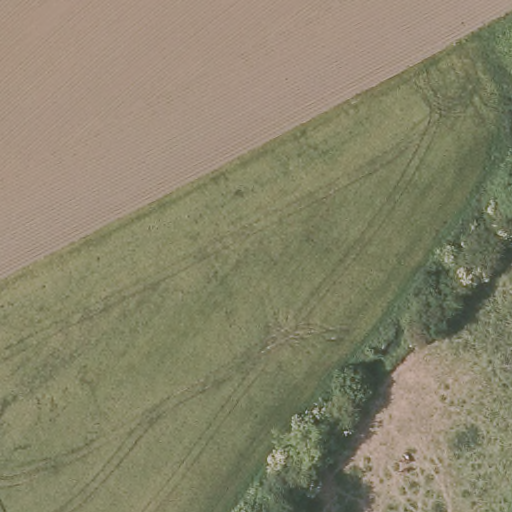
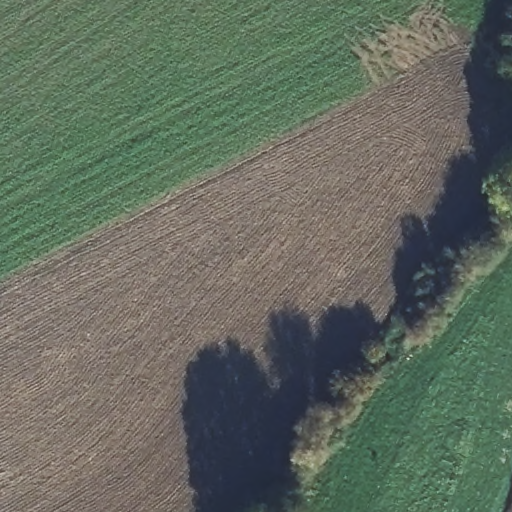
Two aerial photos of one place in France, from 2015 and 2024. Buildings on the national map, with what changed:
[]

